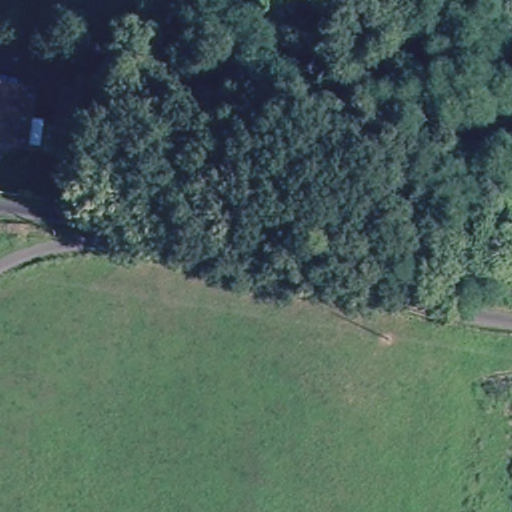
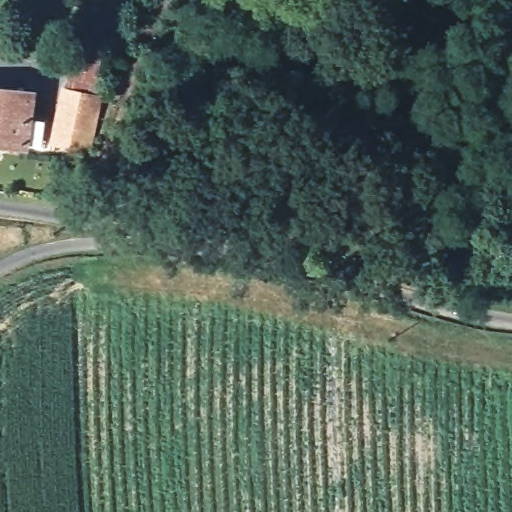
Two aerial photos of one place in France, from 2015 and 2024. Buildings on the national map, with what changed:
new [(75,49),(106,55),(100,92),(65,86),(75,49)]
new [(62,85),(65,86),(100,92),(104,93),(90,156),(47,149),(62,85)]
unchanged [(25,90),(22,118),(39,120),(36,148),(0,143),(0,87),(25,90)]

